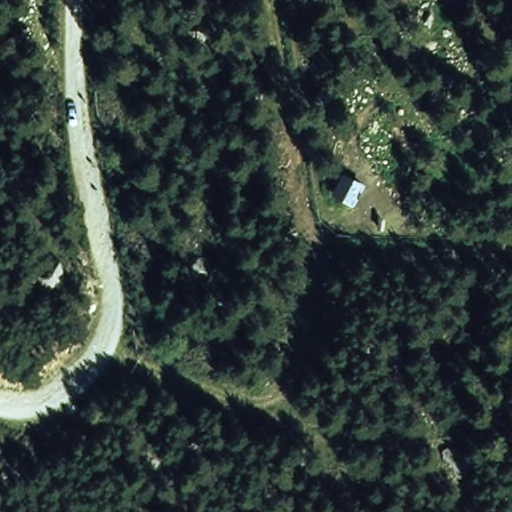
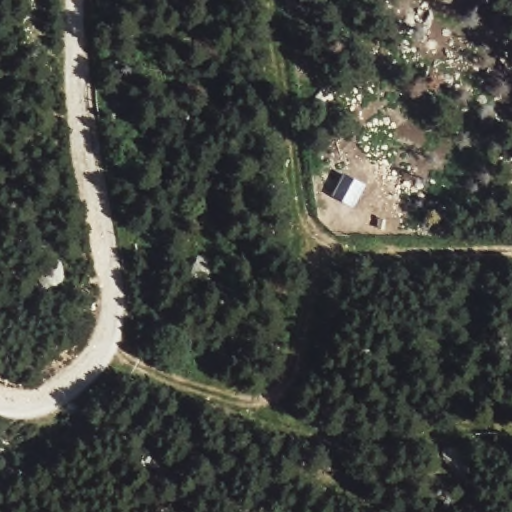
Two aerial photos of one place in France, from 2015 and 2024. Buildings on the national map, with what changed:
unchanged [(355,209),(327,196),(338,169),(367,182),(355,209)]

